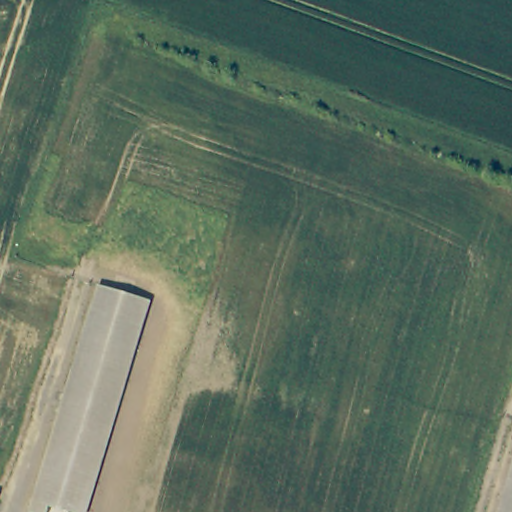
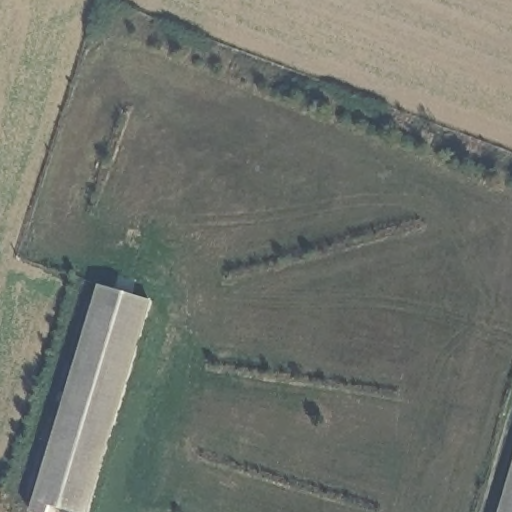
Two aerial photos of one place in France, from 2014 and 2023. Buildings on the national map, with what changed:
unchanged [(148,298),(83,512),(74,512),(49,504),(47,512),(34,512),(29,511),(33,498),(36,500),(102,285),(148,298)]
unchanged [(512,480),(512,512),(502,512),(512,480)]
unchanged [(0,496),(0,489),(2,490),(0,496)]

